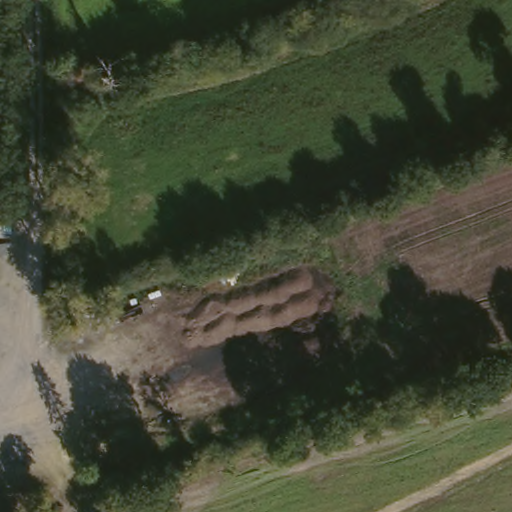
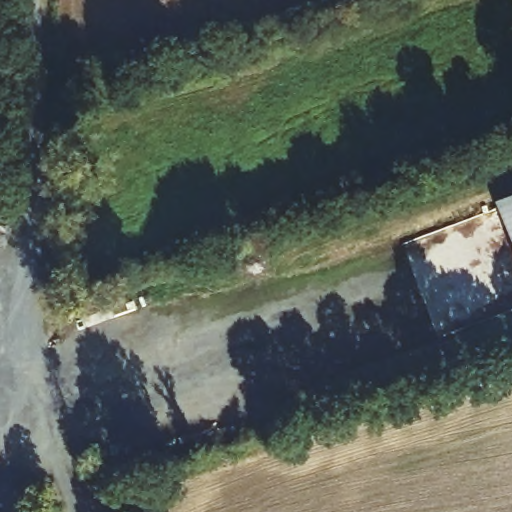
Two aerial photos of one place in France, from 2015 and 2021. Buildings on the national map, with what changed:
new [(512,253),(495,205),(512,199),(512,253)]

